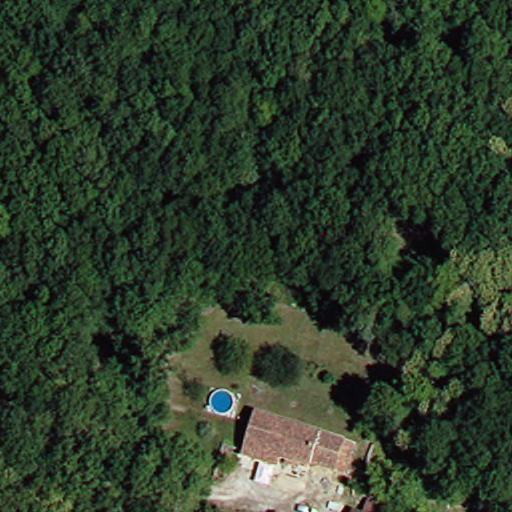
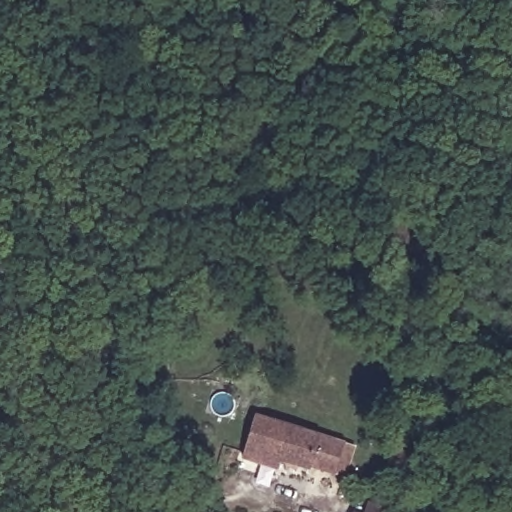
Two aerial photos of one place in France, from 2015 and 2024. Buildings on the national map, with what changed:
unchanged [(352,445),(342,477),(270,457),(267,467),(230,455),(242,413),(352,445)]

